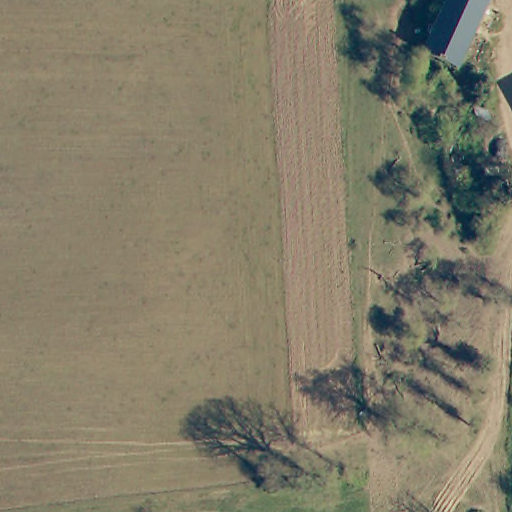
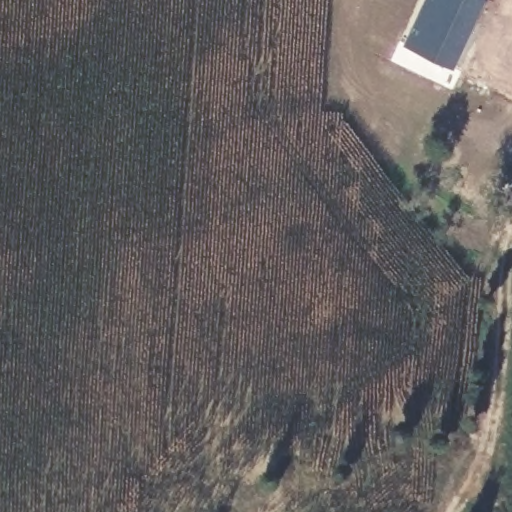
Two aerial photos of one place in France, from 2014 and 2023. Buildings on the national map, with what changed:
unchanged [(455,71),(422,56),(422,55),(448,0),(483,0),(487,2),(455,71)]

